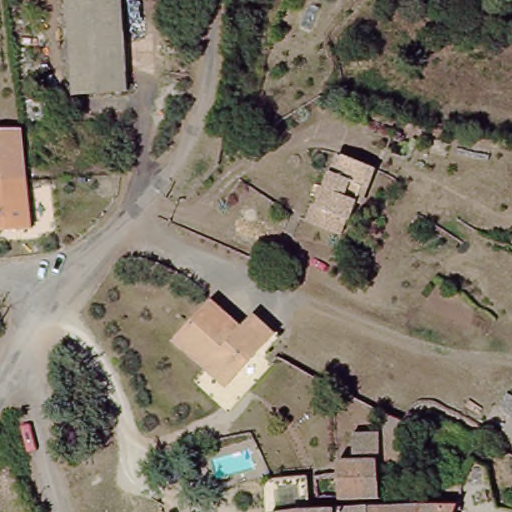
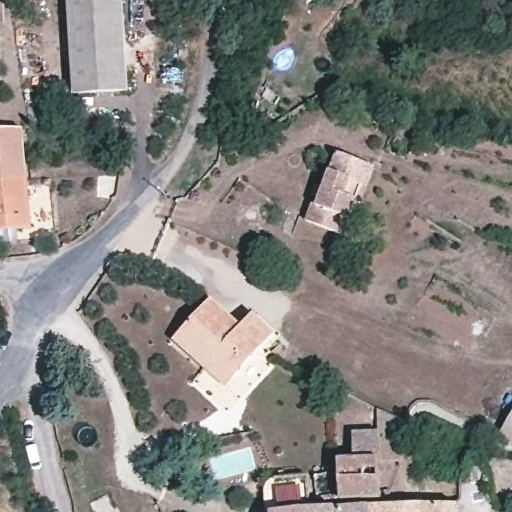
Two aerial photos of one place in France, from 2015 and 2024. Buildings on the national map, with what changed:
unchanged [(68,93),(71,0),(126,0),(125,94),(68,93)]
unchanged [(0,183),(0,132),(17,128),(20,180),(0,183)]
unchanged [(319,204),(337,154),(365,166),(376,171),(362,204),(355,220),(348,218),(340,234),(312,221),(306,217),(313,201),(319,204)]
unchanged [(22,231),(0,235),(0,183),(20,180),(22,231)]
unchanged [(205,367),(174,337),(211,297),(240,325),(249,316),(273,335),(259,349),(231,379),(224,386),(205,367)]
unchanged [(394,415),(400,419),(401,460),(381,461),(374,456),(356,457),(354,419),(368,418),(369,432),(378,432),(376,405),(394,415)]
unchanged [(512,434),(500,428),(512,409),(512,434)]
unchanged [(341,473),(340,458),(356,457),(374,456),(381,461),(382,498),(341,500),(341,473)]
unchanged [(308,475),(311,502),(286,503),(276,474),(308,475)]
unchanged [(402,508),(457,505),(455,512),(370,512),(370,510),(402,508)]
unchanged [(370,510),(370,512),(303,512),(302,511),(370,510)]
unchanged [(272,512),(302,511),(303,512),(272,512)]

